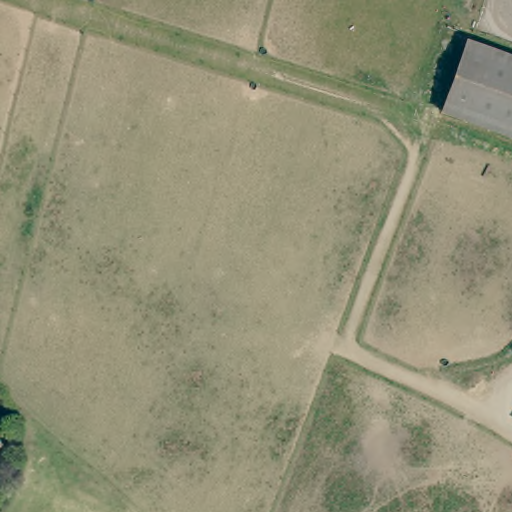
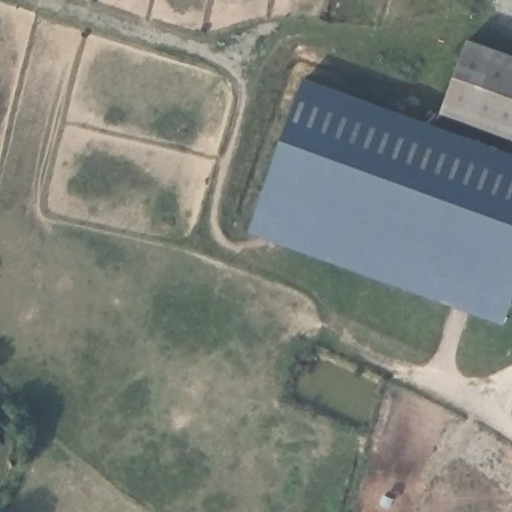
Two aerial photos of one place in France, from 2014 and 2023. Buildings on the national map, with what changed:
unchanged [(470,43),(512,56),(512,133),(447,113),(470,43)]
new [(246,233),(302,78),(512,153),(512,299),(502,326),(246,233)]
unchanged [(0,462),(0,433),(14,446),(0,462)]

